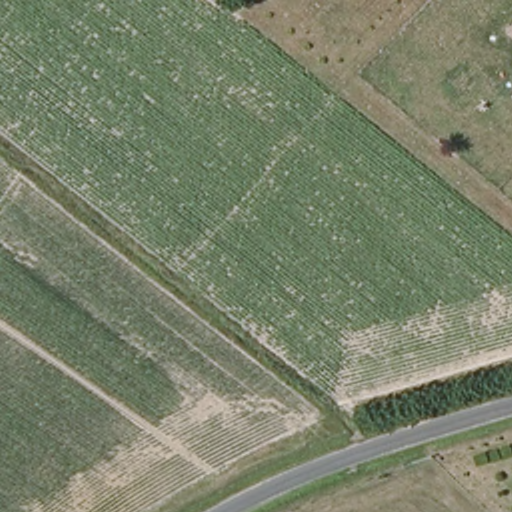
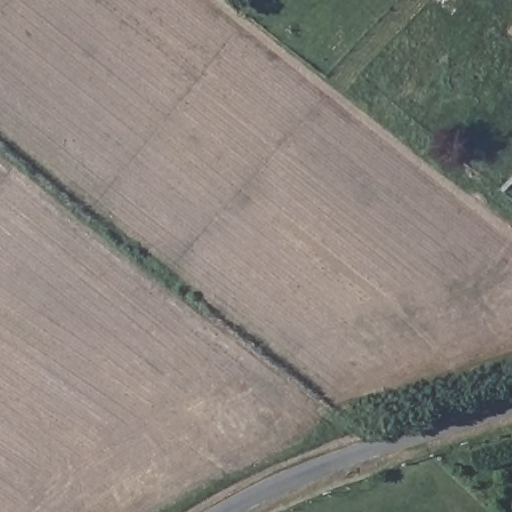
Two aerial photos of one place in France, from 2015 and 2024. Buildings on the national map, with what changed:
unchanged [(508,29),(512,24),(512,32),(508,29)]

